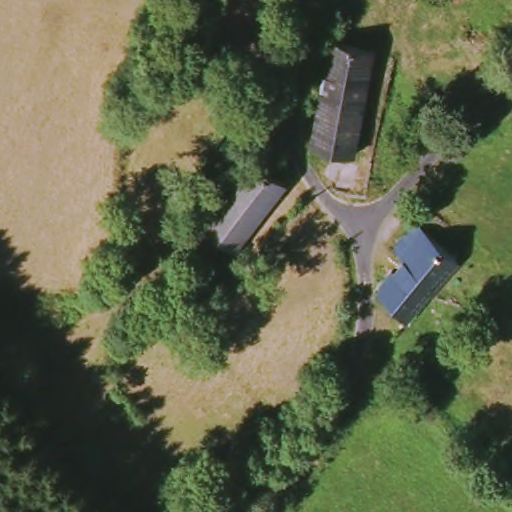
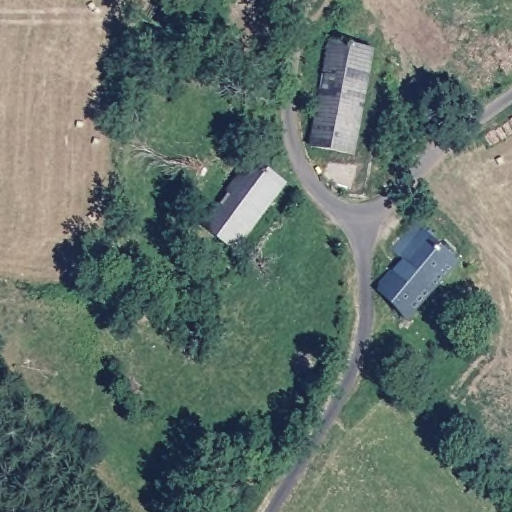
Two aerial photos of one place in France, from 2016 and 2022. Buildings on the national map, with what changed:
unchanged [(385,48),(386,53),(365,169),(309,155),(313,106),(324,34),(377,45),(385,48)]
unchanged [(237,258),(200,230),(242,166),(248,156),(287,186),(237,258)]
unchanged [(387,256),(412,226),(425,238),(455,264),(432,292),(401,327),(370,298),(399,268),(387,256)]

